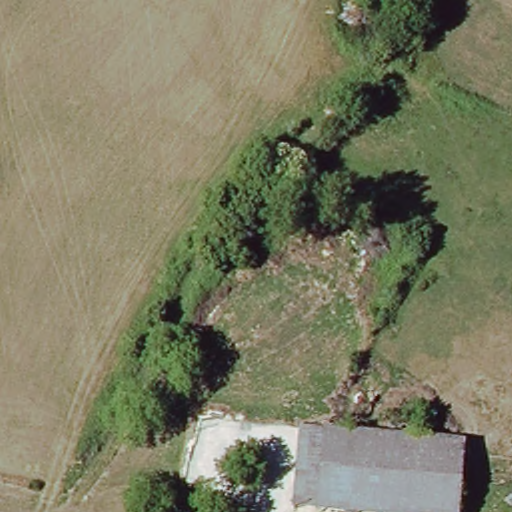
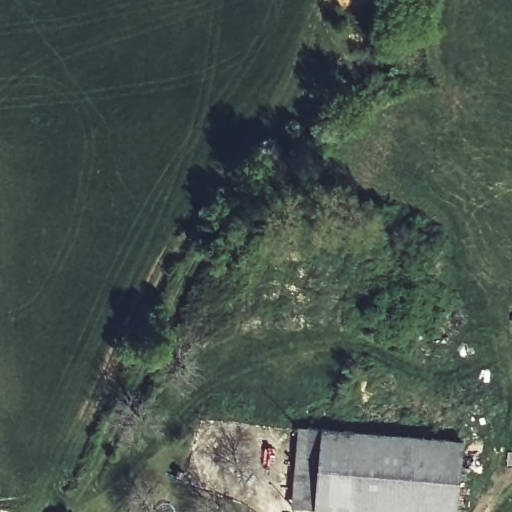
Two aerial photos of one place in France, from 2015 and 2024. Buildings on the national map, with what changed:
unchanged [(461,444),(456,512),(327,512),(315,511),(319,455),(298,453),(298,431),(312,432),(461,444)]
unchanged [(315,511),(293,509),(298,453),(319,455),(315,511)]

